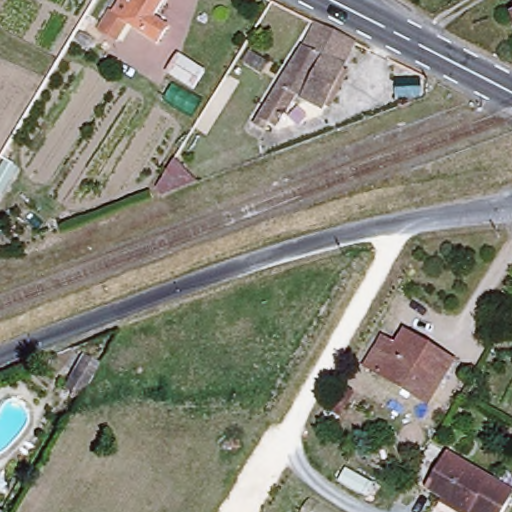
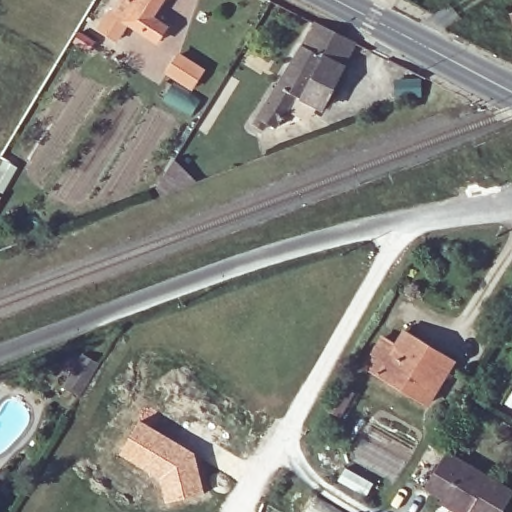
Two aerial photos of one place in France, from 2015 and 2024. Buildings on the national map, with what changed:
unchanged [(112,33),(105,28),(123,0),(158,0),(150,15),(165,25),(155,40),(130,24),(121,39),(112,33)]
unchanged [(344,62),(352,67),(325,110),(302,96),(280,133),(270,128),(267,134),(257,127),(322,27),(356,44),(344,62)]
unchanged [(200,69),(191,88),(169,76),(179,58),(200,69)]
unchanged [(0,201),(0,164),(2,160),(19,168),(0,201)]
unchanged [(175,161),(197,183),(160,197),(155,190),(175,161)]
demolished [(331,322),(313,343),(284,318),(302,297),(331,322)]
unchanged [(396,346),(405,331),(453,360),(427,403),(366,365),(382,338),(396,346)]
new [(82,357),(98,366),(79,401),(62,391),(82,357)]
new [(139,418),(196,451),(205,494),(165,503),(157,478),(118,454),(139,418)]
unchanged [(502,512),(463,512),(422,489),(447,449),(512,489),(512,495),(502,512)]

